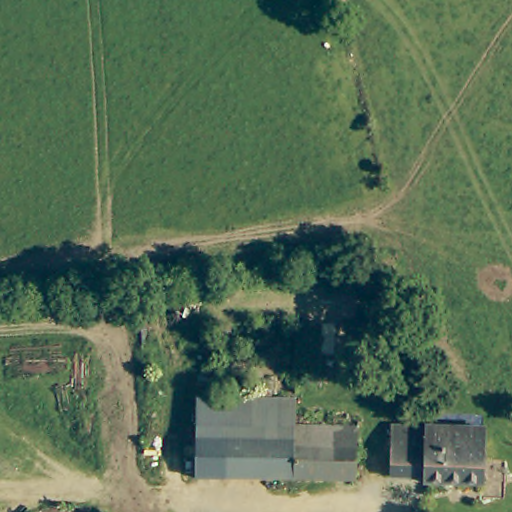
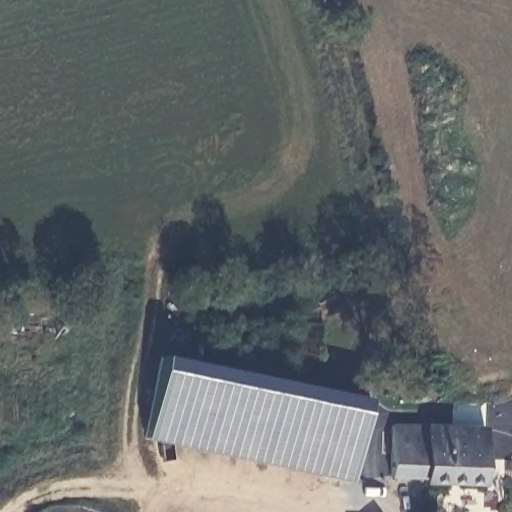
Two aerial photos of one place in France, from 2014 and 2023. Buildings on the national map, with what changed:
new [(351,481),(144,440),(160,356),(369,398),(351,481)]
unchanged [(486,424),(486,427),(483,482),(423,479),(423,472),(391,470),(391,445),(392,421),(486,424)]
demolished [(355,425),(354,447),(352,478),(295,477),(298,423),(355,425)]

